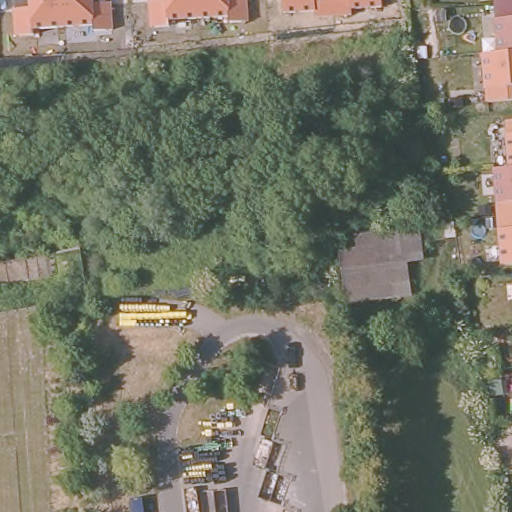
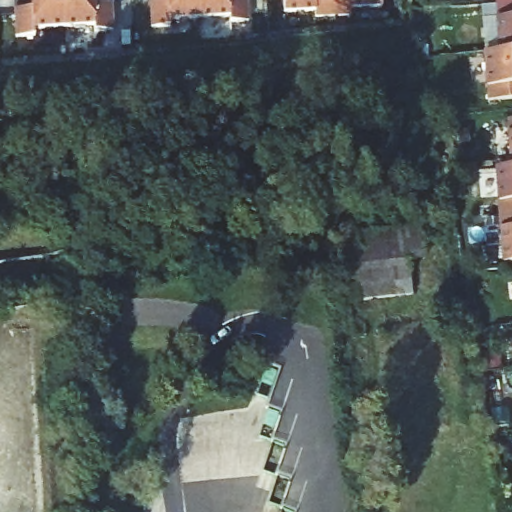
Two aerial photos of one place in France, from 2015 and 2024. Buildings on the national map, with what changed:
unchanged [(30,0),(96,0),(97,4),(112,3),(115,33),(94,34),(92,26),(42,30),(41,39),(16,39),(12,10),(31,9),(30,0)]
unchanged [(227,25),(227,18),(172,22),(172,28),(150,30),(149,3),(165,1),(164,0),(248,0),(250,24),(227,25)]
unchanged [(351,10),(352,16),(315,18),(314,11),(284,14),(283,0),(380,0),(381,10),(351,10)]
unchanged [(487,100),(482,52),(497,51),(494,5),(493,0),(512,0),(512,98),(487,100)]
unchanged [(502,263),(494,167),(509,166),(506,120),(512,119),(512,262),(502,263)]
unchanged [(405,234),(413,297),(349,306),(340,245),(340,242),(405,234)]

